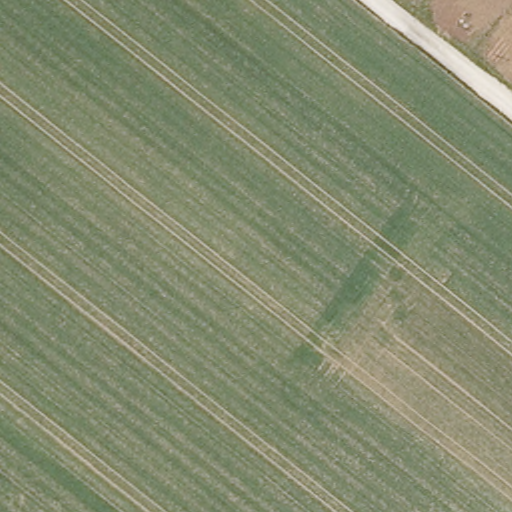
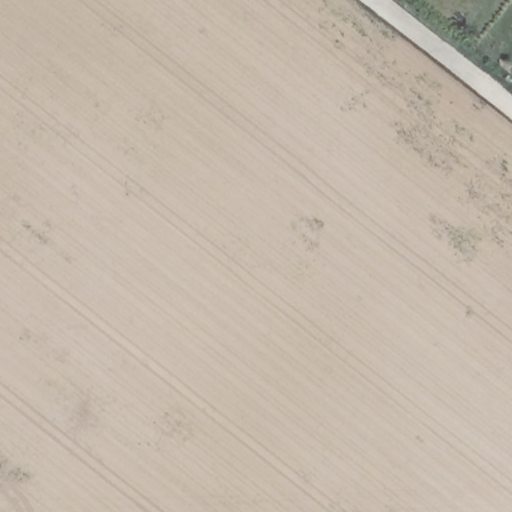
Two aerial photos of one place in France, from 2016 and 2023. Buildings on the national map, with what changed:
[]

